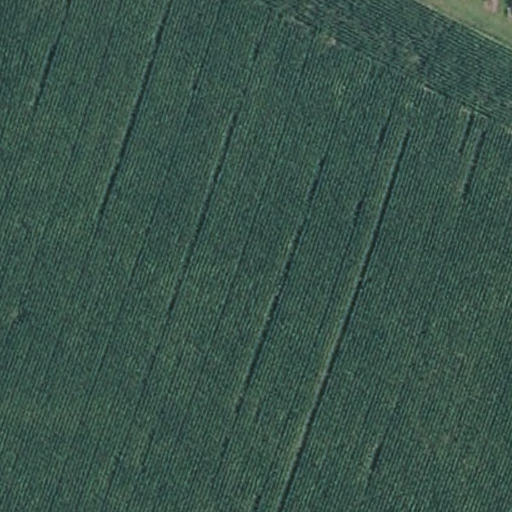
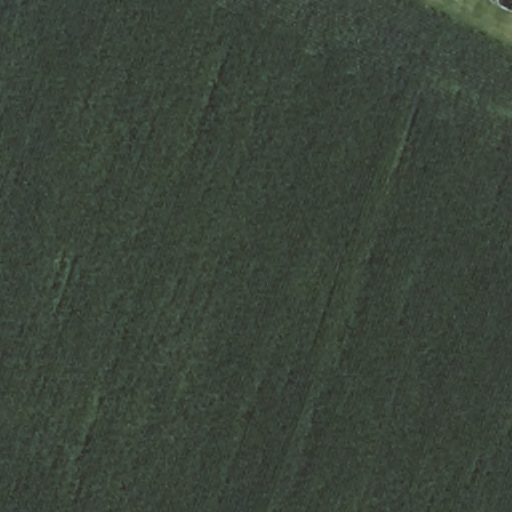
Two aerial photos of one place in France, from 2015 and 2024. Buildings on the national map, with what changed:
[]

